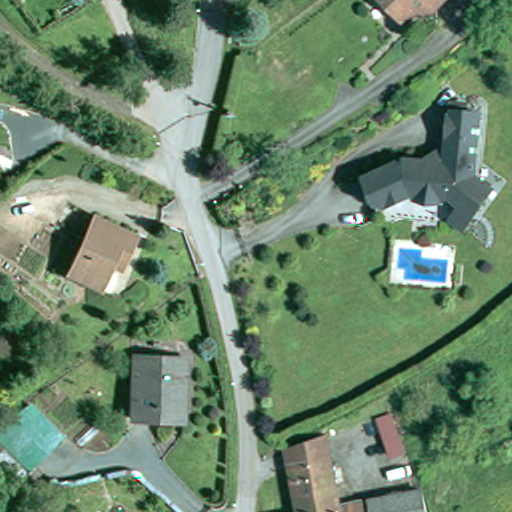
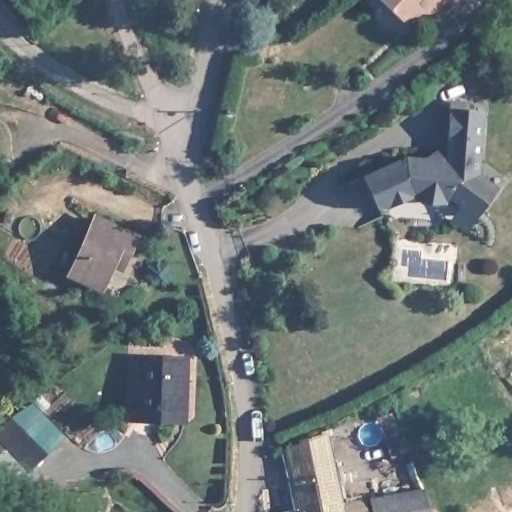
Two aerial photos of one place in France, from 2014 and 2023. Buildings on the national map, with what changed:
unchanged [(430,10),(430,21),(419,20),(407,31),(376,1),(376,0),(453,0),(444,10),(430,10)]
unchanged [(458,223),(467,212),(452,200),(449,203),(433,205),(419,202),(414,198),(382,211),(368,179),(408,161),(439,162),(453,154),(458,106),(473,106),(473,114),(488,115),(482,178),(500,191),(478,219),(468,230),(458,223)]
unchanged [(140,241),(124,272),(116,268),(103,294),(70,278),(98,222),(140,241)]
unchanged [(188,364),(186,425),(136,423),(138,361),(188,364)]
unchanged [(13,422),(29,410),(64,442),(33,475),(0,443),(0,435),(13,422)]
unchanged [(289,473),(284,453),(324,443),(329,465),(340,512),(297,512),(289,473)]
unchanged [(423,498),(426,512),(371,512),(370,509),(423,498)]
unchanged [(364,510),(364,512),(352,512),(364,510)]

